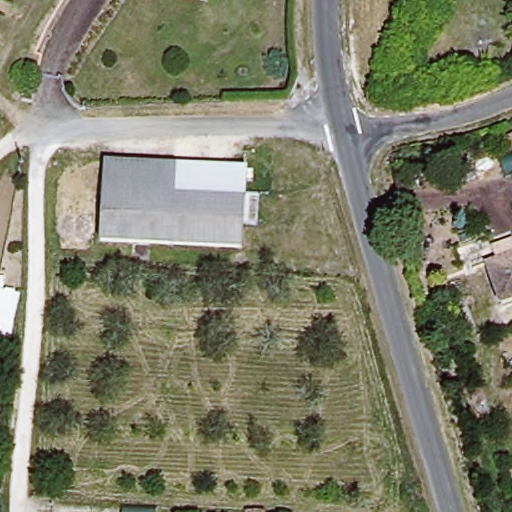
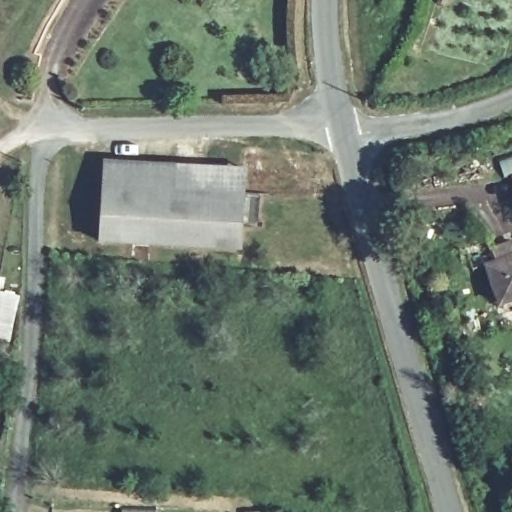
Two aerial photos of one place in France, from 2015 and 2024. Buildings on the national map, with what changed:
unchanged [(242,250),(101,242),(105,161),(176,166),(246,170),(244,200),(242,250)]
unchanged [(487,267),(512,258),(512,302),(501,306),(487,267)]

